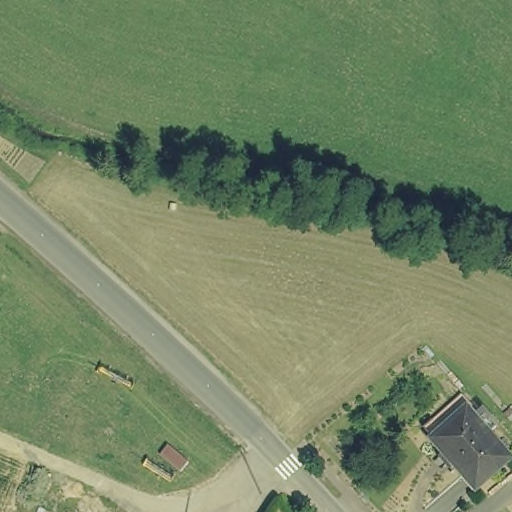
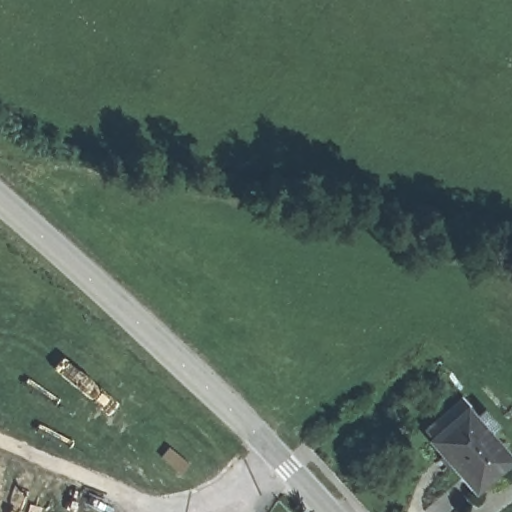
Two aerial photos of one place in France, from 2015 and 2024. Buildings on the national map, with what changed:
unchanged [(486,418),(497,432),(489,440),(511,464),(477,495),(431,444),(423,435),(463,400),(472,410),(482,422),(486,418)]

